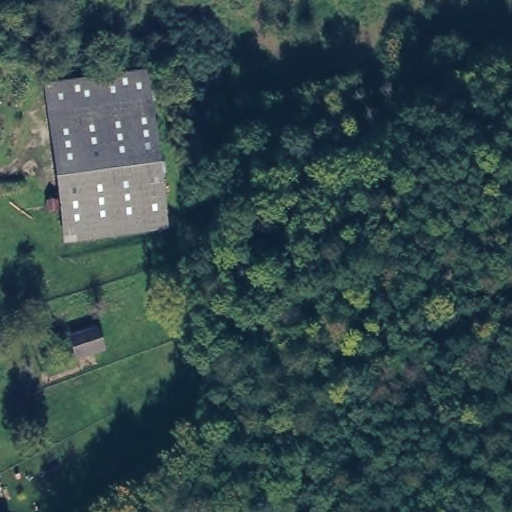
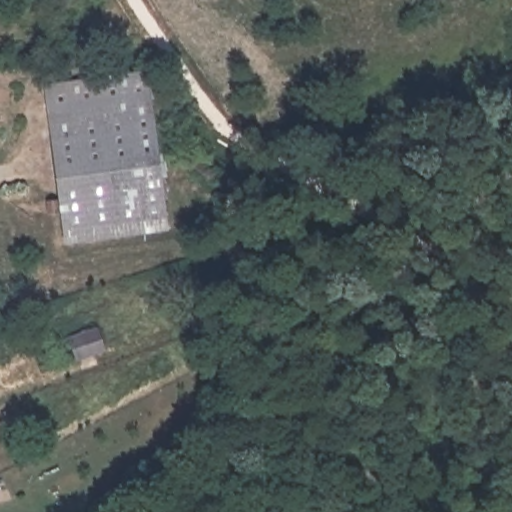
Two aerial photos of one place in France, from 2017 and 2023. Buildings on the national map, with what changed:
unchanged [(163,226),(63,239),(43,84),(142,73),(163,226)]
unchanged [(101,325),(106,340),(68,353),(62,338),(101,325)]
unchanged [(61,409),(68,422),(55,428),(48,415),(61,409)]

